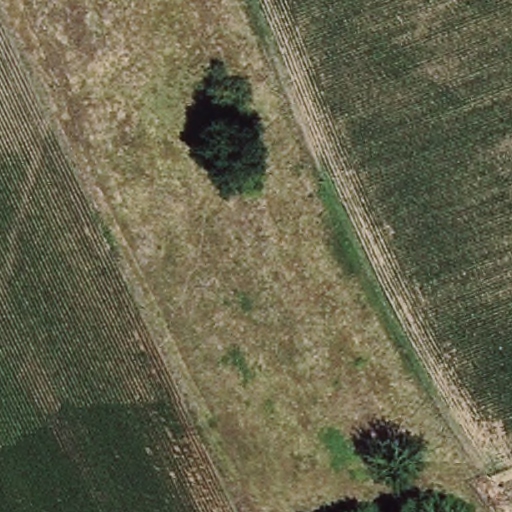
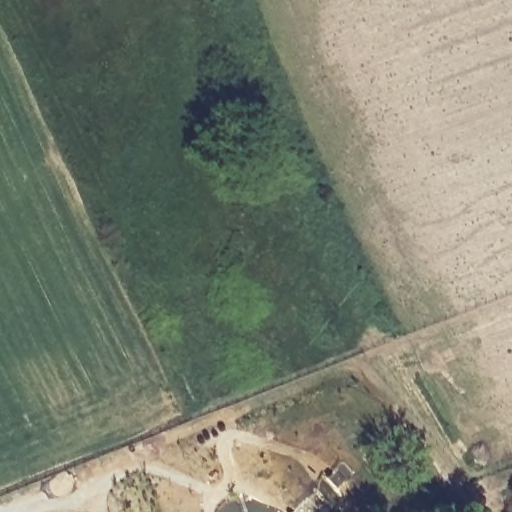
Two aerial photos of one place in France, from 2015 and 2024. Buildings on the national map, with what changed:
[]

